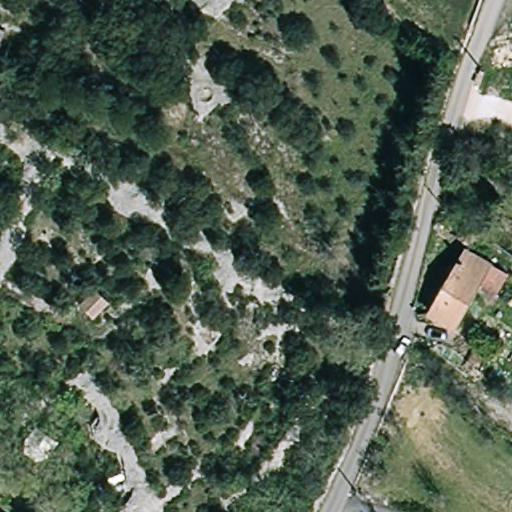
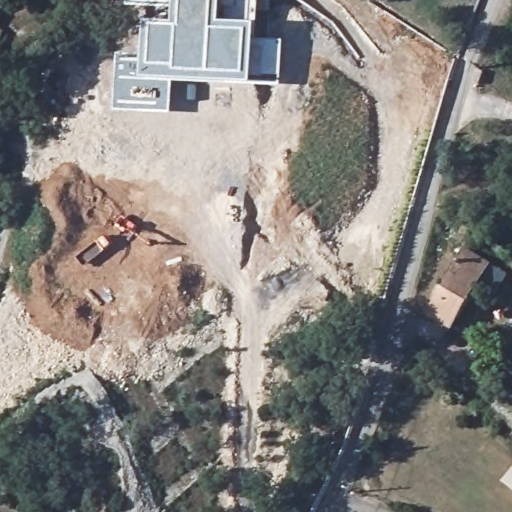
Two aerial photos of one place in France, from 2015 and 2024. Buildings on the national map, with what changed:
new [(283,89),(176,83),(174,116),(118,113),(121,55),(147,59),(149,24),(176,27),(177,10),(129,8),(129,0),(259,0),(258,39),(286,41),(283,89)]
unchanged [(6,29),(0,46),(0,27),(6,29)]
unchanged [(468,248),(452,236),(461,226),(476,238),(468,248)]
unchanged [(489,270),(496,275),(484,292),(477,287),(449,329),(424,313),(464,254),(489,270)]
unchanged [(89,320),(78,307),(95,291),(107,305),(89,320)]
new [(506,486),(512,478),(512,491),(506,486)]

